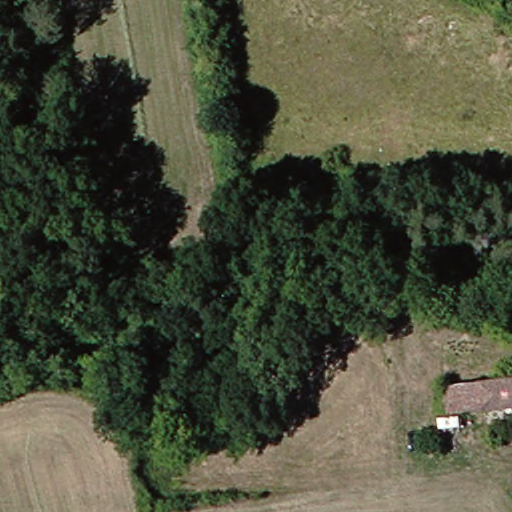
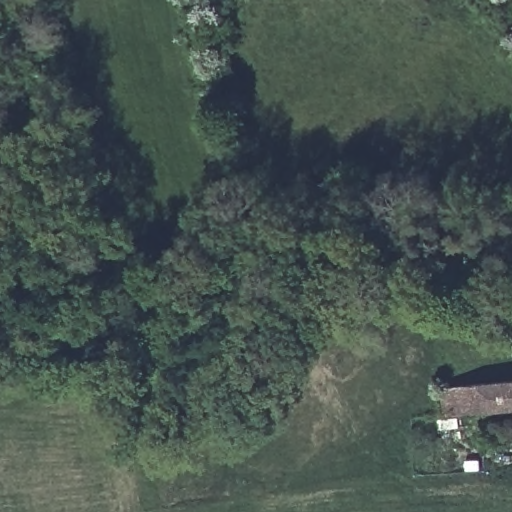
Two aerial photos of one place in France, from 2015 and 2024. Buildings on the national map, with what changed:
unchanged [(512,380),(512,413),(483,417),(477,384),(512,380)]
unchanged [(449,421),(444,389),(477,384),(483,417),(449,421)]

